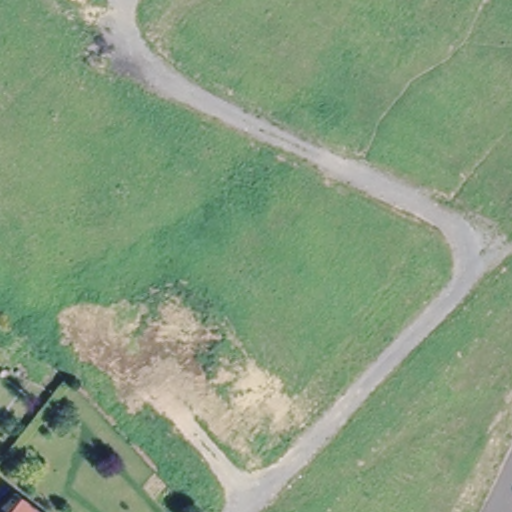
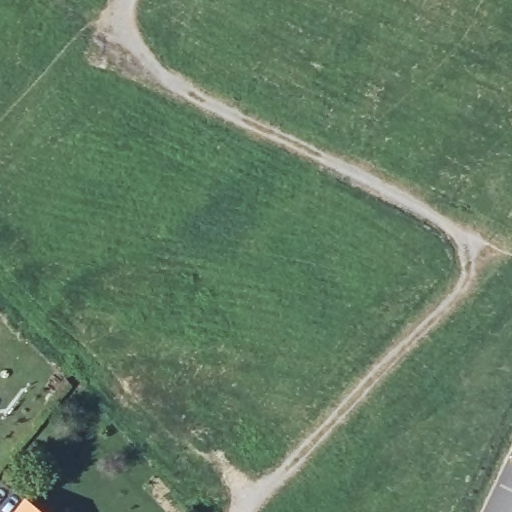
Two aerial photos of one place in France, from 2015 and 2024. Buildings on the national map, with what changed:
unchanged [(47,512),(11,512),(23,495),(47,512)]

